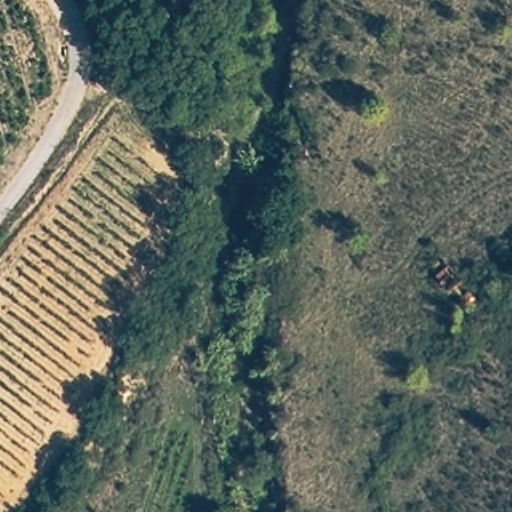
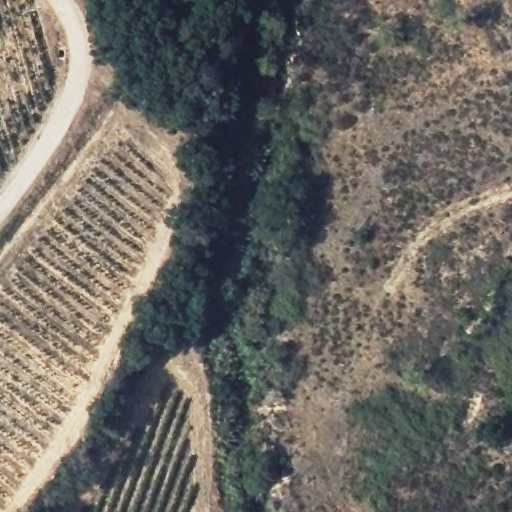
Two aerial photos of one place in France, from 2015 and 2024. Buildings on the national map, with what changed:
[]

